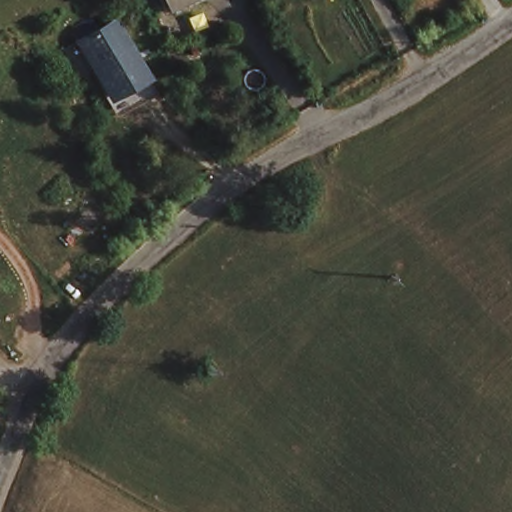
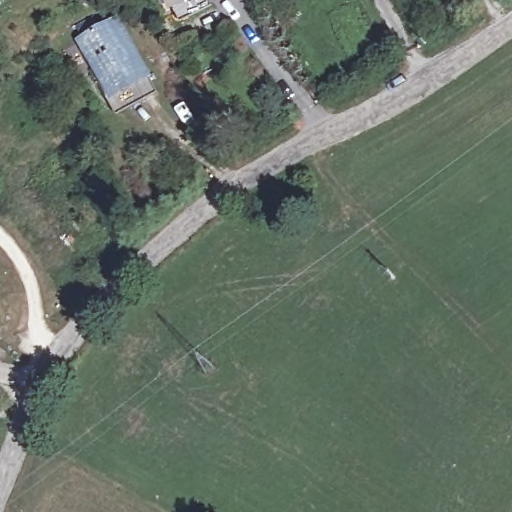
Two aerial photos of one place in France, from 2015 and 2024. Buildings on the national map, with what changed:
unchanged [(170,9),(165,0),(187,0),(170,9)]
unchanged [(113,19),(143,76),(107,96),(91,65),(95,62),(81,37),(113,19)]

